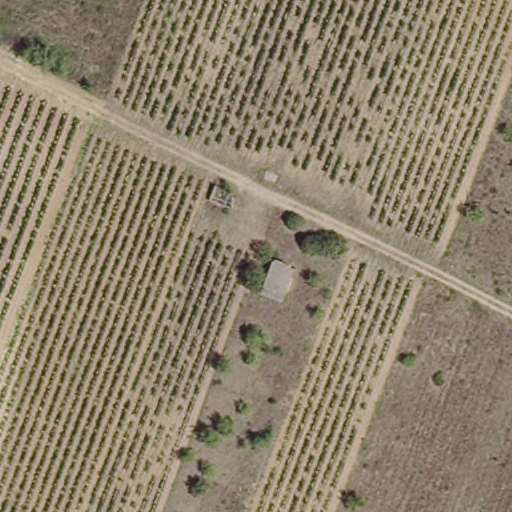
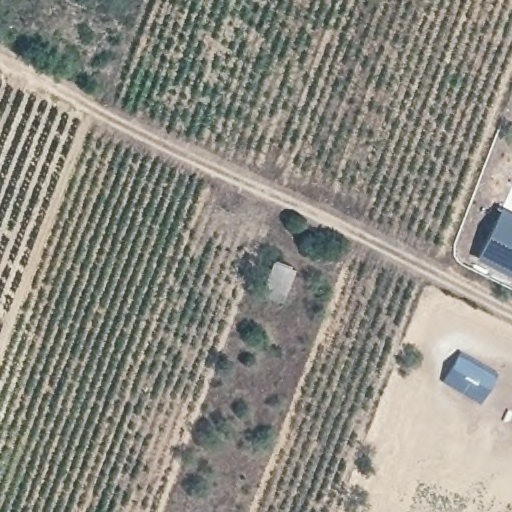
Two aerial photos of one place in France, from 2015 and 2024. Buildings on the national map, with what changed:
unchanged [(230,213),(207,201),(212,185),(235,195),(230,213)]
new [(500,206),(512,211),(512,269),(478,252),(500,206)]
unchanged [(255,295),(271,260),(292,269),(279,305),(255,295)]
new [(498,372),(481,403),(443,382),(461,351),(498,372)]

